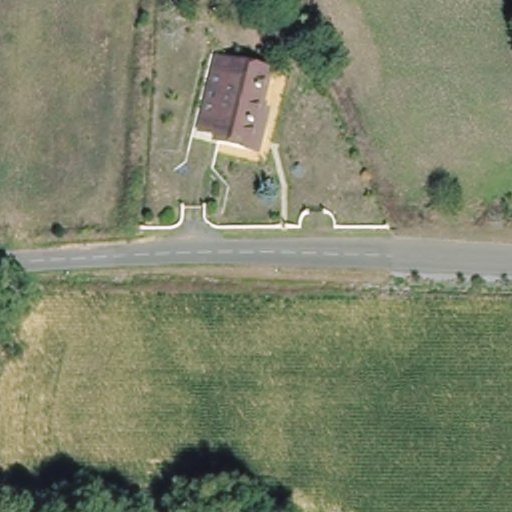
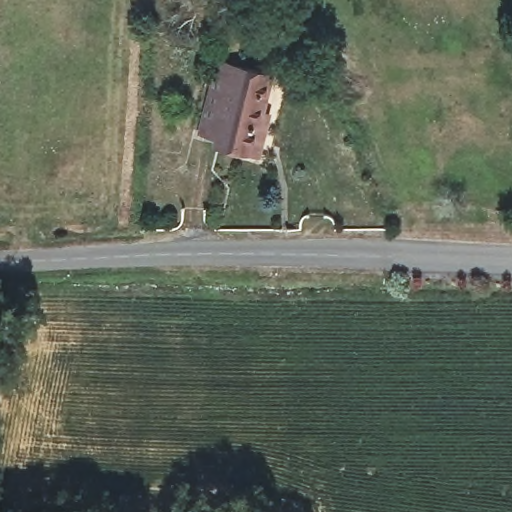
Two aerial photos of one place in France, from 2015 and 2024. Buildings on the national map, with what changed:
unchanged [(220,143),(222,135),(200,127),(224,58),(272,71),(269,77),(246,80),(248,102),(235,103),(240,148),(220,143)]
unchanged [(235,103),(248,102),(246,80),(269,77),(258,106),(270,111),(257,152),(240,148),(235,103)]

